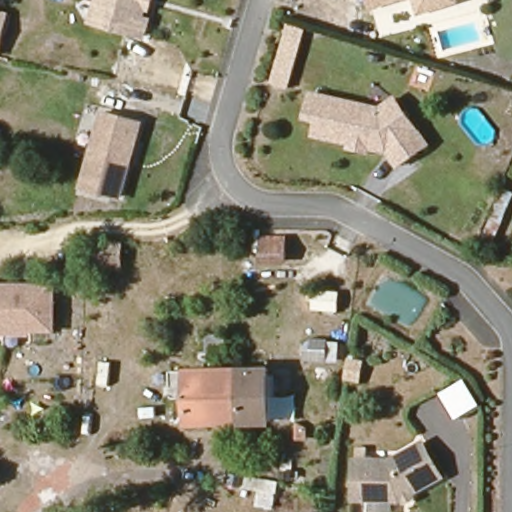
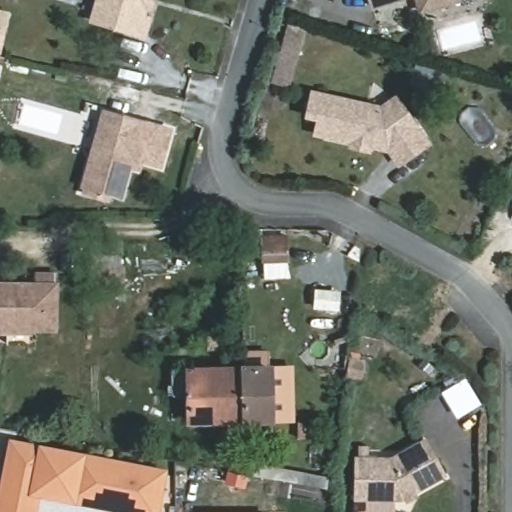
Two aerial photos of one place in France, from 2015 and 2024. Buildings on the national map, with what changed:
unchanged [(86,19),(92,0),(146,0),(137,35),(86,19)]
unchanged [(365,1),(365,0),(369,0),(365,1)]
unchanged [(410,0),(447,0),(438,2),(423,6),(412,8),(410,0)]
unchanged [(0,55),(0,10),(9,12),(1,55),(0,55)]
unchanged [(305,27),(290,89),(270,84),(286,22),(305,27)]
unchanged [(428,140),(401,162),(389,147),(386,149),(367,145),(366,150),(349,145),(350,140),(314,131),(318,113),(307,110),(312,91),(380,108),(394,97),(428,140)]
unchanged [(117,196),(80,185),(104,111),(140,123),(117,196)]
new [(140,123),(141,119),(174,128),(162,170),(143,164),(140,174),(125,169),(140,123)]
demolished [(136,218),(136,230),(137,239),(114,239),(114,229),(115,218),(136,218)]
demolished [(280,247),(261,248),(260,225),(278,225),(280,247)]
new [(287,259),(269,260),(267,237),(286,237),(287,259)]
demolished [(317,278),(318,294),(293,295),(292,279),(317,278)]
unchanged [(57,331),(0,332),(0,281),(56,280),(57,331)]
unchanged [(339,291),(340,307),(315,307),(314,292),(339,291)]
unchanged [(266,374),(269,426),(247,426),(247,375),(266,374)]
unchanged [(247,426),(195,426),(195,376),(247,375),(247,426)]
unchanged [(480,403),(455,419),(440,392),(465,377),(480,403)]
new [(158,512),(110,512),(39,498),(36,512),(0,512),(0,478),(8,438),(62,449),(166,469),(158,512)]
unchanged [(443,477),(406,499),(352,499),(353,455),(387,455),(423,438),(443,477)]

